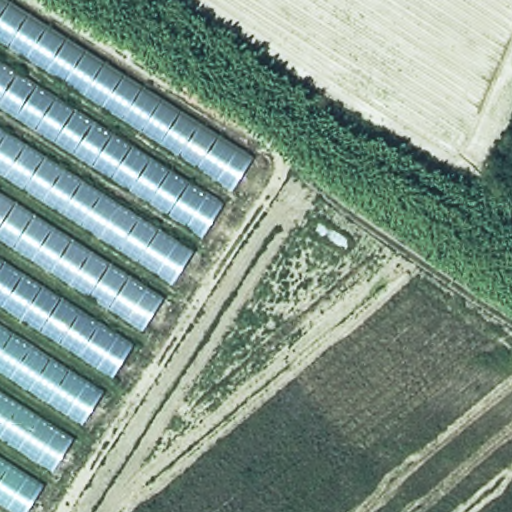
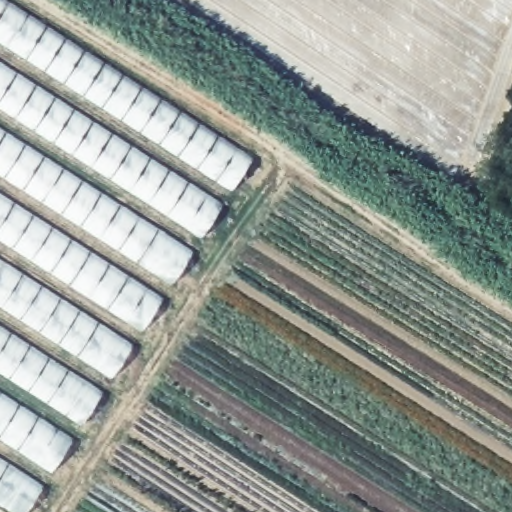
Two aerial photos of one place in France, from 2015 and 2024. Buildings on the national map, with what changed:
unchanged [(10,0),(256,152),(27,512),(0,512),(0,0),(10,0)]

